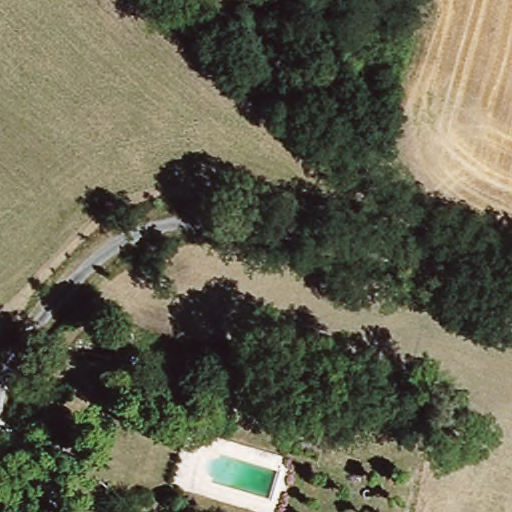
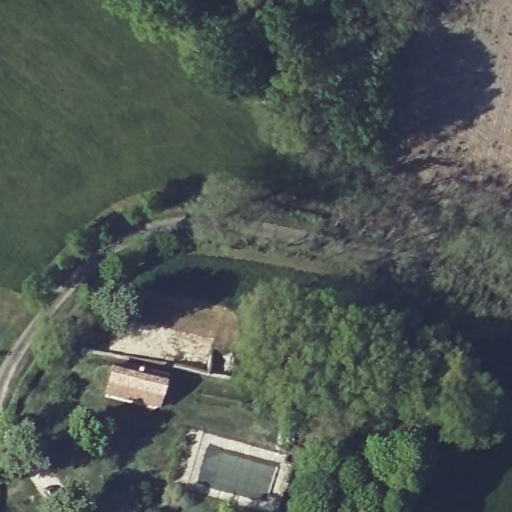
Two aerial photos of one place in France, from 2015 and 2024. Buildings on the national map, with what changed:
unchanged [(197,358),(191,384),(142,374),(147,348),(197,358)]
new [(157,402),(160,403),(159,409),(105,397),(111,369),(164,382),(161,395),(157,402)]

